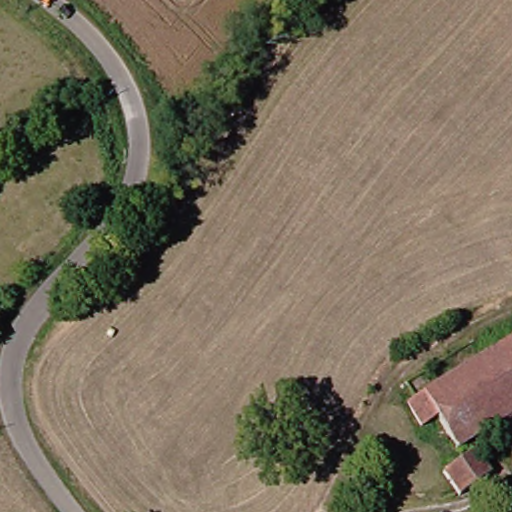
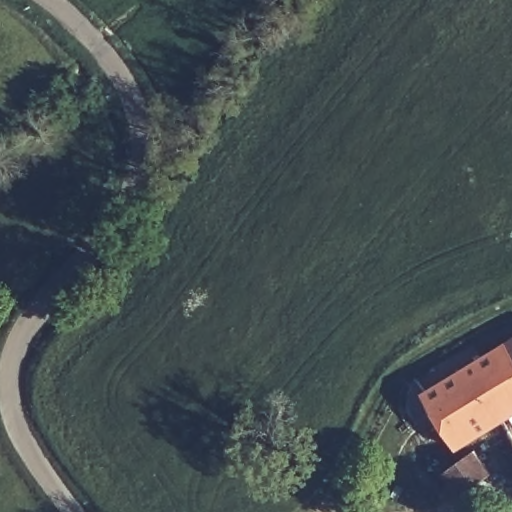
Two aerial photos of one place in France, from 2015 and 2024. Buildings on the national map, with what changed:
unchanged [(512,341),(512,352),(507,345),(512,341)]
unchanged [(507,345),(512,352),(512,423),(509,420),(488,434),(463,449),(441,420),(426,433),(412,407),(507,345)]
unchanged [(464,496),(449,472),(481,450),(497,472),(464,496)]

